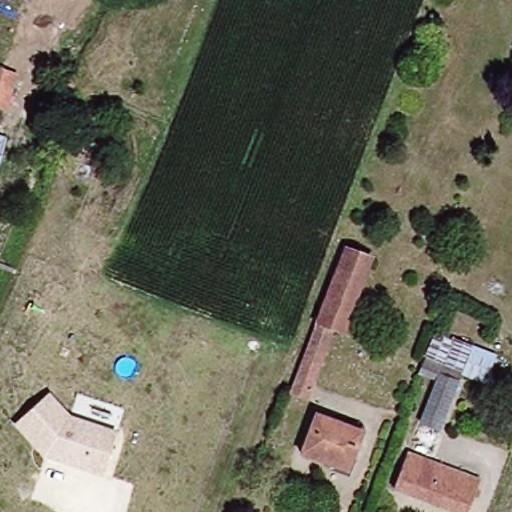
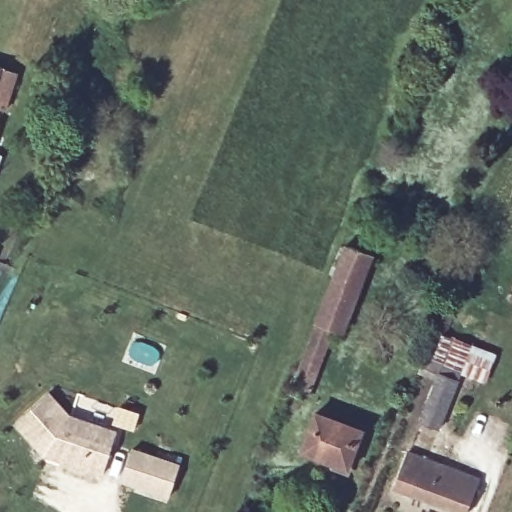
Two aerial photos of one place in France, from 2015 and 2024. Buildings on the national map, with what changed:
unchanged [(0,111),(0,65),(25,74),(10,115),(0,111)]
unchanged [(0,140),(0,116),(8,119),(0,140)]
unchanged [(317,323),(347,246),(378,258),(347,336),(337,329),(311,400),(292,394),(317,323)]
unchanged [(436,380),(421,374),(439,332),(498,356),(489,383),(465,376),(443,432),(421,422),(436,380)]
unchanged [(69,416),(116,431),(103,475),(44,455),(16,422),(48,394),(69,416)]
unchanged [(317,412),(365,429),(351,470),(303,453),(317,412)]
new [(130,447),(180,463),(167,503),(116,483),(130,447)]
unchanged [(395,484),(405,456),(481,482),(472,510),(395,484)]

